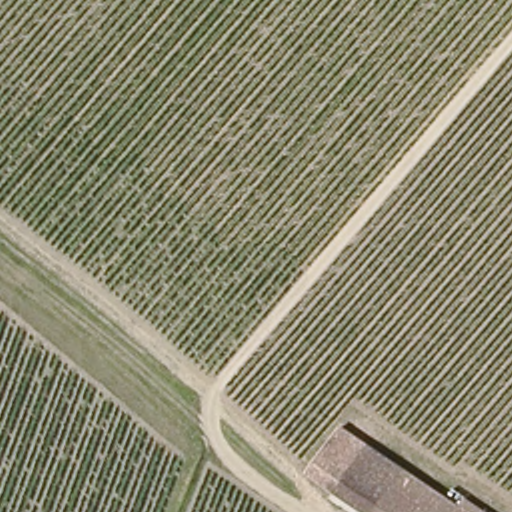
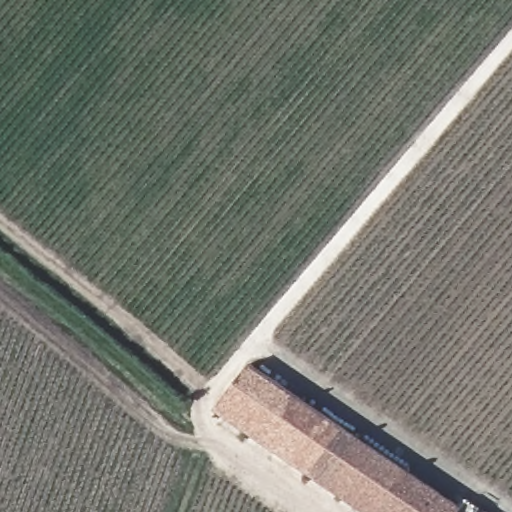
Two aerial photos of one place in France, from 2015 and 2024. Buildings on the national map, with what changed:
new [(214,410),(250,363),(368,441),(364,446),(333,491),(214,410)]
unchanged [(332,493),(364,446),(385,460),(348,504),(332,493)]
unchanged [(385,460),(451,508),(460,499),(478,512),(359,512),(348,504),(385,460)]

